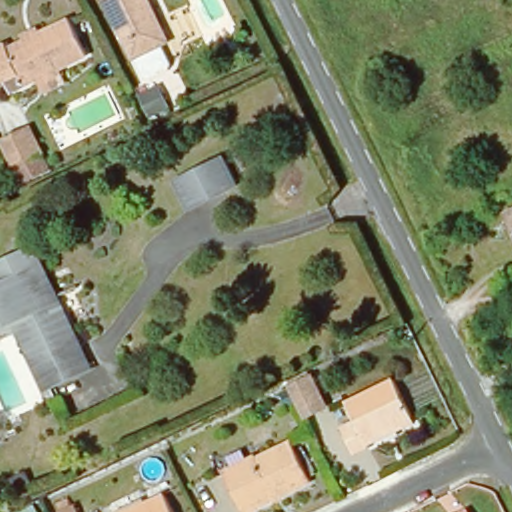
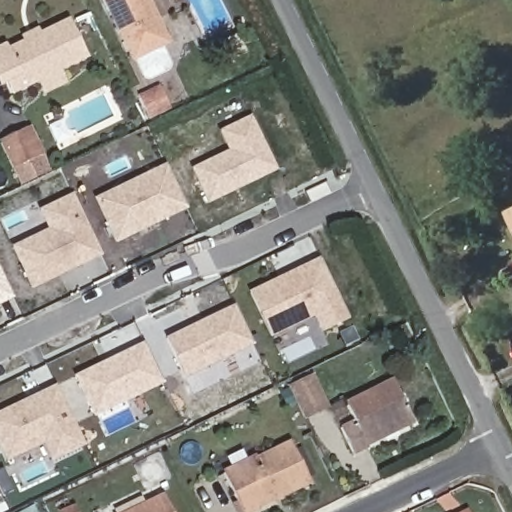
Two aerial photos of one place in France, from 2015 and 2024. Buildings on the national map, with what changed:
unchanged [(161,42),(170,60),(169,66),(149,76),(144,75),(134,56),(133,56),(105,0),(148,0),(154,12),(167,39),(161,42)]
unchanged [(15,90),(8,76),(0,60),(0,42),(38,24),(42,35),(73,19),(90,52),(15,90)]
new [(150,120),(138,95),(159,85),(172,110),(150,120)]
new [(228,151),(219,131),(251,116),(278,171),(209,204),(192,169),(228,151)]
unchanged [(4,155),(32,140),(45,164),(16,179),(4,155)]
demolished [(220,155),(234,184),(188,205),(175,177),(220,155)]
new [(166,164),(188,210),(116,245),(93,199),(166,164)]
new [(38,210),(72,194),(103,256),(31,290),(11,247),(47,230),(38,210)]
unchanged [(503,214),(512,209),(512,230),(503,214)]
demolished [(48,385),(14,318),(0,325),(0,265),(27,252),(42,282),(22,292),(30,309),(51,299),(75,349),(84,367),(48,385)]
new [(349,320),(321,333),(313,318),(270,339),(248,292),(320,257),(349,320)]
new [(0,306),(0,270),(14,299),(0,306)]
new [(234,305),(254,346),(185,380),(165,338),(234,305)]
new [(144,345),(162,381),(92,415),(74,379),(144,345)]
unchanged [(288,385),(308,375),(322,403),(301,413),(287,385),(288,385)]
new [(86,445),(51,462),(42,444),(5,462),(0,452),(0,412),(57,385),(86,445)]
unchanged [(366,451),(349,458),(336,434),(352,426),(344,406),(386,385),(403,422),(408,432),(366,451)]
unchanged [(258,455),(261,460),(294,445),(312,482),(248,512),(242,512),(222,472),(258,455)]
unchanged [(171,512),(127,512),(162,495),(171,512)]

